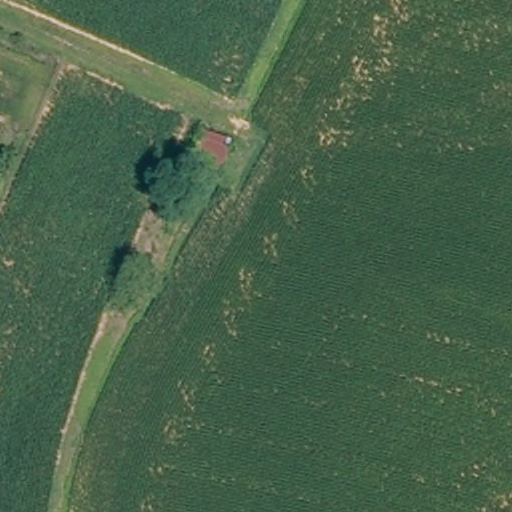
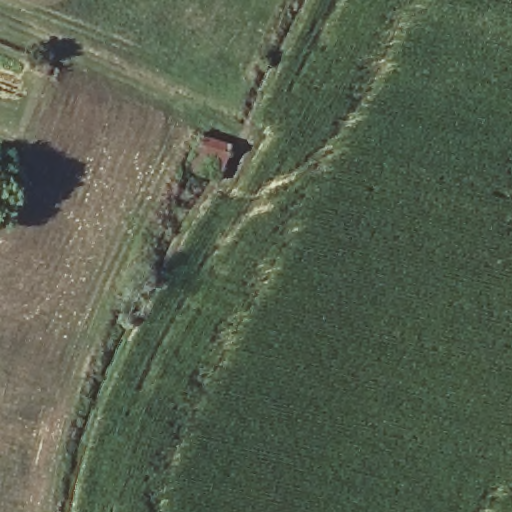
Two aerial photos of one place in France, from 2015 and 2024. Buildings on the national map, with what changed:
[]

